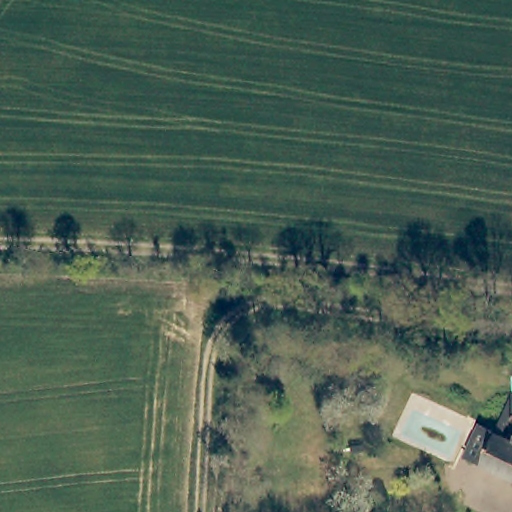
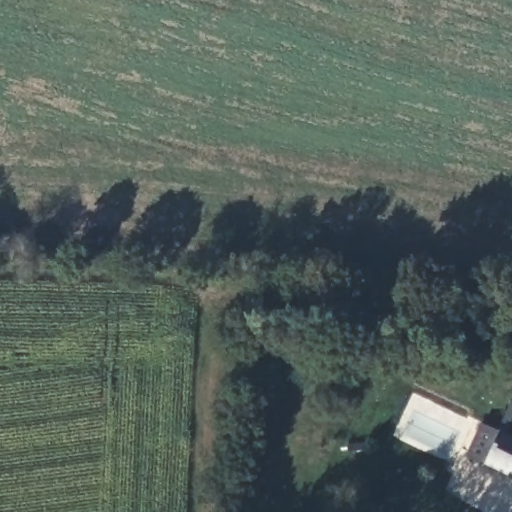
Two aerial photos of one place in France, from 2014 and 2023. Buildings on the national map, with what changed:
unchanged [(481,436),(495,442),(500,435),(512,440),(512,479),(470,460),(481,436)]
unchanged [(381,512),(371,512),(375,511),(380,512),(381,512)]

